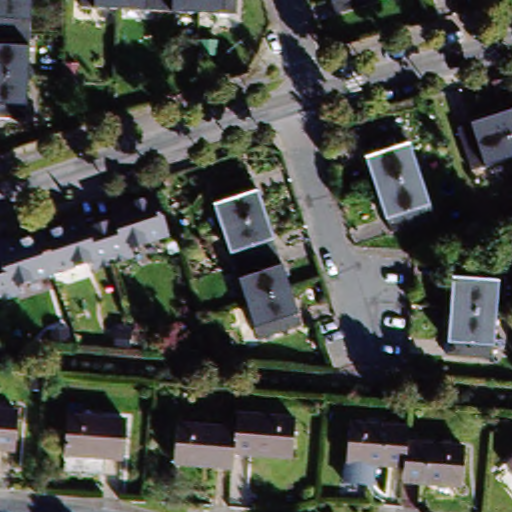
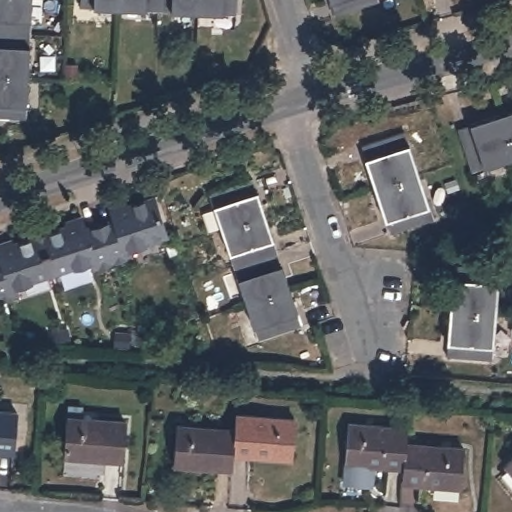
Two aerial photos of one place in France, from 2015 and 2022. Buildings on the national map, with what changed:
unchanged [(0,116),(0,0),(30,0),(23,117),(0,116)]
unchanged [(81,4),(81,0),(233,0),(232,15),(81,4)]
unchanged [(337,15),(332,0),(377,0),(378,1),(337,15)]
unchanged [(512,110),(512,157),(478,166),(464,124),(512,110)]
unchanged [(405,143),(434,236),(394,248),(366,154),(405,143)]
unchanged [(250,187),(299,332),(259,346),(210,201),(250,187)]
unchanged [(131,252),(116,257),(113,247),(103,217),(104,217),(118,212),(115,203),(113,198),(129,193),(131,197),(160,188),(173,227),(133,241),(136,250),(131,252)]
unchanged [(94,253),(53,266),(50,255),(49,254),(40,227),(69,218),(68,213),(84,208),(85,212),(88,222),(103,217),(113,247),(116,257),(103,261),(98,263),(94,253)]
unchanged [(0,294),(0,236),(9,233),(10,237),(40,227),(49,254),(50,255),(53,266),(11,280),(14,289),(10,291),(0,294)]
unchanged [(497,261),(489,351),(447,346),(454,257),(497,261)]
unchanged [(10,454),(0,453),(0,415),(13,416),(10,454)]
unchanged [(292,420),(289,458),(231,454),(233,428),(233,415),(292,420)]
unchanged [(124,424),(121,463),(64,459),(66,420),(124,424)]
unchanged [(173,463),(176,423),(233,428),(231,454),(229,467),(173,463)]
unchanged [(404,444),(401,471),(344,466),(346,429),(404,433),(404,444)]
unchanged [(401,471),(404,444),(464,448),(462,485),(400,481),(401,471)]
unchanged [(512,453),(512,471),(503,459),(512,453)]

